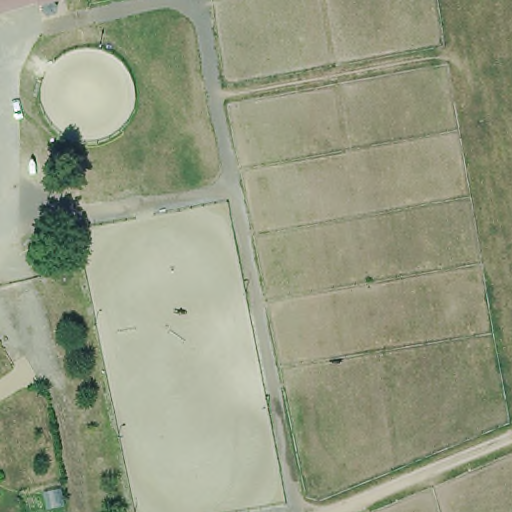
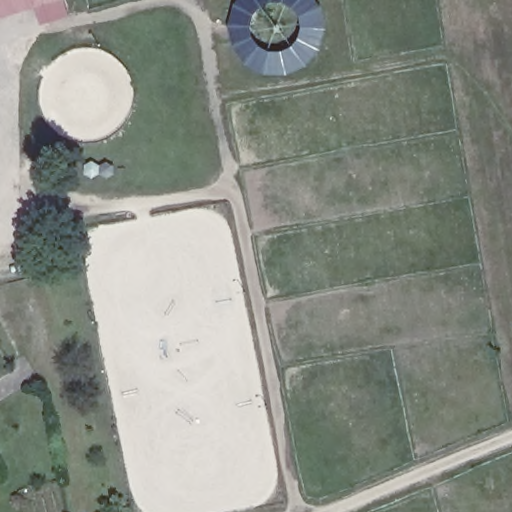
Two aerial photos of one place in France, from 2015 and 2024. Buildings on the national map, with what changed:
unchanged [(0,15),(0,0),(57,0),(0,15)]
new [(328,31),(321,52),(308,69),(287,76),(265,75),(246,65),(233,48),(231,26),(236,6),(241,0),(315,0),(322,9),(328,31)]
new [(0,501),(0,492),(3,499),(0,501)]

